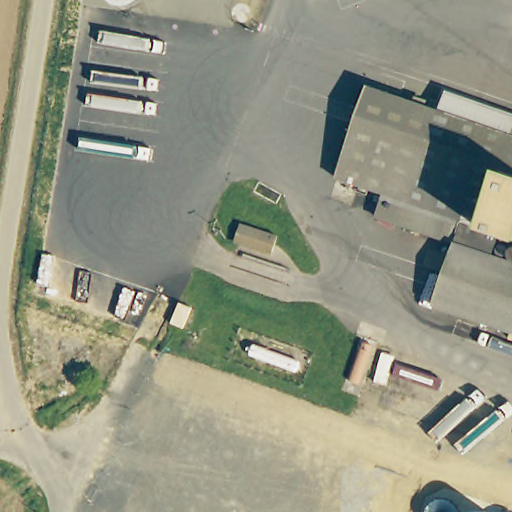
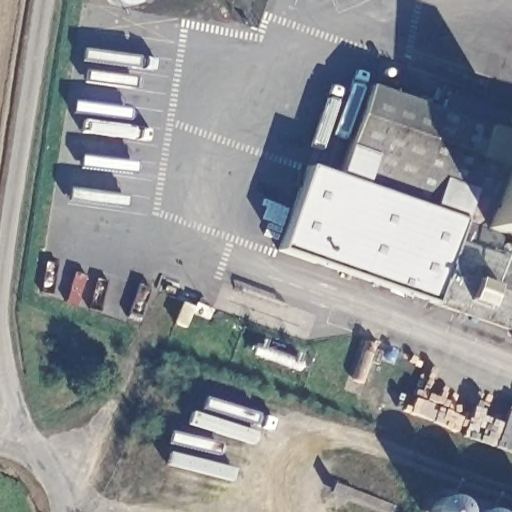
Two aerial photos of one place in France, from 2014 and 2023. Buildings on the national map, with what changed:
unchanged [(512,127),(512,211),(505,229),(480,220),(484,210),(467,204),(464,215),(395,190),(385,186),(340,170),(372,79),(512,127)]
new [(278,247),(307,166),(337,177),(340,170),(385,186),(395,190),(464,215),(467,204),(484,210),(480,220),(505,229),(496,255),(455,240),(433,302),(278,247)]
demolished [(458,231),(451,229),(448,236),(377,210),(385,186),(395,190),(464,215),(458,231)]
unchanged [(505,229),(512,211),(512,231),(505,229)]
demolished [(278,230),(272,246),(236,233),(242,216),(278,230)]
unchanged [(512,261),(512,331),(433,302),(455,240),(512,261)]
unchanged [(471,508),(481,512),(425,512),(432,493),(471,508)]

